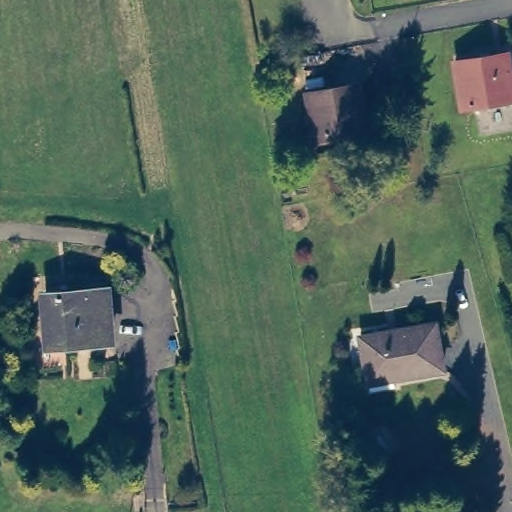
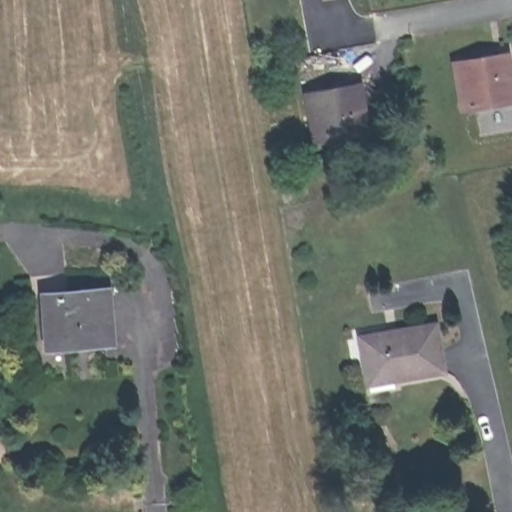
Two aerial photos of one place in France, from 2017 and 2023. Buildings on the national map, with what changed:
unchanged [(512,64),(512,96),(465,103),(457,59),(510,50),(512,64)]
unchanged [(360,86),(370,132),(316,140),(306,95),(360,86)]
unchanged [(110,289),(112,342),(52,344),(51,293),(110,289)]
unchanged [(425,322),(432,366),(390,373),(392,384),(365,388),(355,333),(425,322)]

